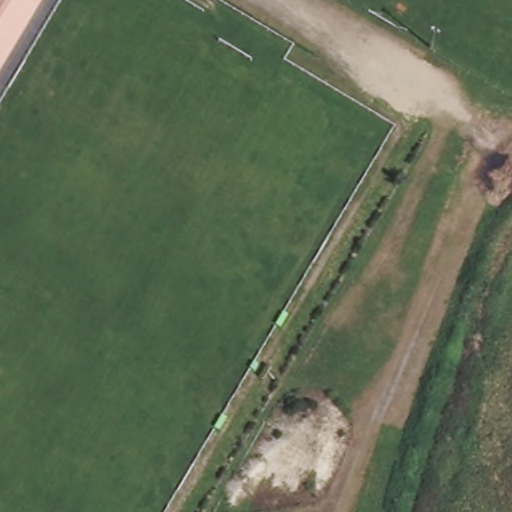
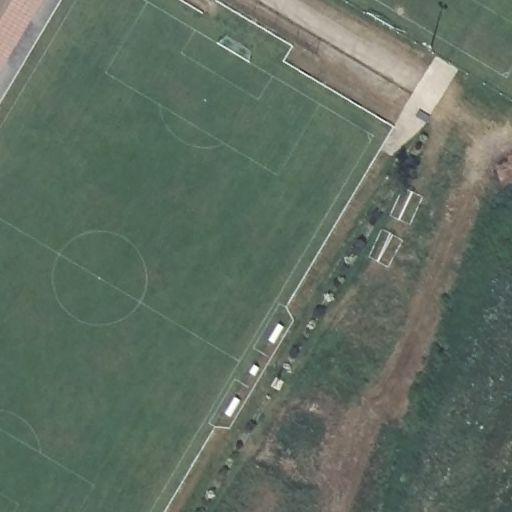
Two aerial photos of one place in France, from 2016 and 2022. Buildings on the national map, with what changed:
unchanged [(0,0),(35,0),(0,59),(0,0)]
unchanged [(0,76),(0,59),(35,0),(45,0),(0,76)]

